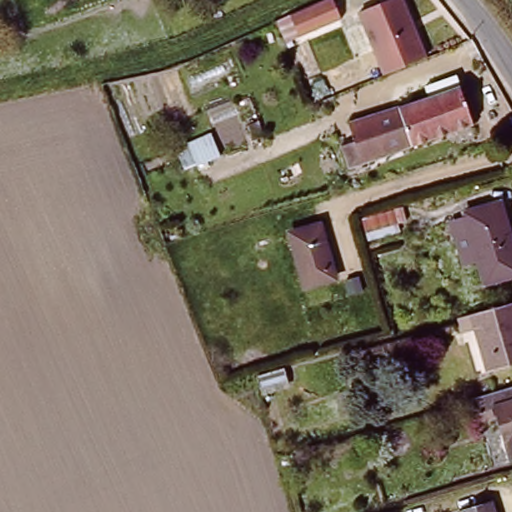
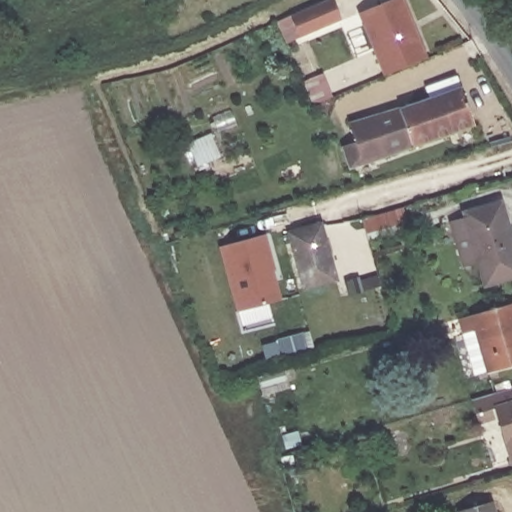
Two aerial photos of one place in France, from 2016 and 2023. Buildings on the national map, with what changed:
unchanged [(298,36),(295,27),(280,32),(275,19),(319,0),(333,0),(341,18),(298,36)]
unchanged [(383,72),(371,45),(355,52),(346,32),(360,25),(356,13),(387,0),(403,0),(427,55),(383,72)]
unchanged [(348,176),(347,173),(338,176),(335,167),(344,164),(340,151),(355,145),(350,130),(429,104),(426,94),(458,83),(461,93),(475,132),(348,176)]
unchanged [(498,205),(512,256),(512,280),(485,287),(478,265),(463,269),(455,241),(470,236),(463,214),(498,205)]
unchanged [(318,229),(332,284),(302,292),(287,236),(318,229)]
new [(265,234),(274,268),(272,269),(280,299),(237,311),(219,246),(265,234)]
unchanged [(512,310),(512,366),(484,374),(467,318),(510,305),(512,310)]
unchanged [(273,371),(280,368),(284,382),(260,389),(257,379),(257,375),(273,371)]
unchanged [(503,460),(490,411),(470,417),(465,402),(512,389),(512,458),(503,460)]
unchanged [(492,504),(495,512),(468,512),(492,504)]

